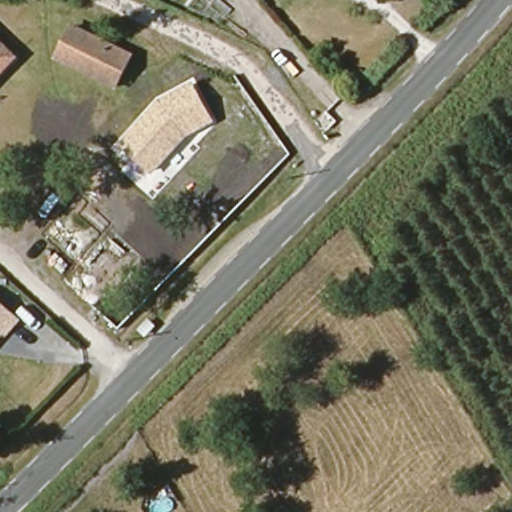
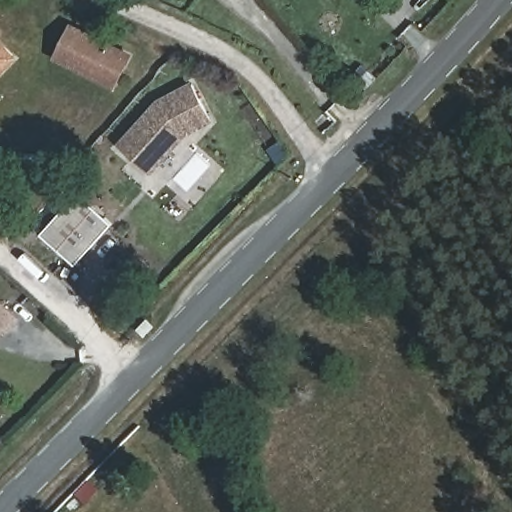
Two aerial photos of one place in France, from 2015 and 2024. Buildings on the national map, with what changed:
unchanged [(115,86),(59,59),(73,29),(130,57),(115,86)]
unchanged [(0,67),(0,44),(11,55),(0,67)]
unchanged [(184,139),(152,175),(114,145),(154,101),(192,83),(213,123),(184,139)]
new [(77,265),(42,234),(78,193),(112,222),(77,265)]
unchanged [(6,330),(3,328),(0,331),(0,301),(18,318),(6,330)]

